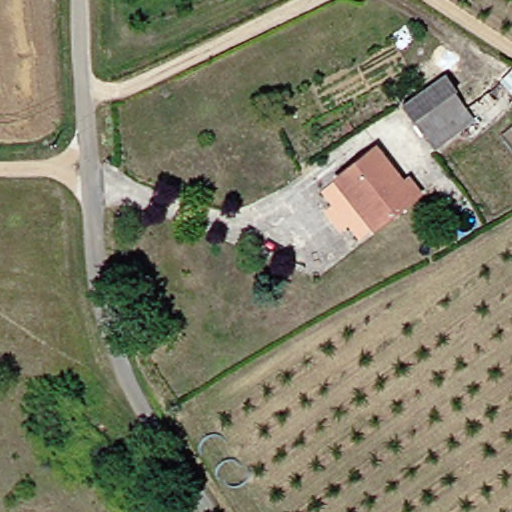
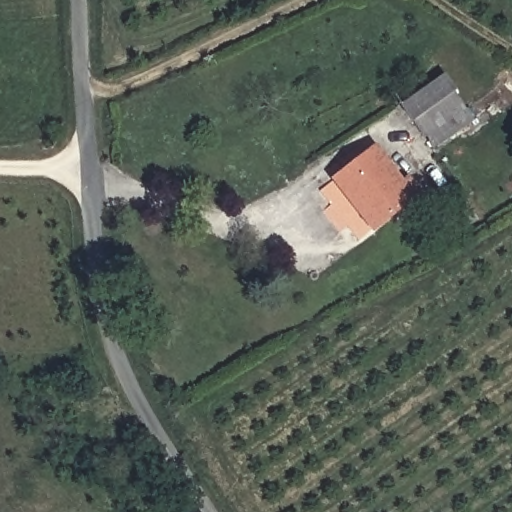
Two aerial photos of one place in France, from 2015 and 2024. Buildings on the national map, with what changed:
unchanged [(462,110),(507,74),(512,79),(512,103),(463,144),(456,135),(431,155),(396,106),(438,79),(462,110)]
unchanged [(397,189),(406,185),(415,199),(363,230),(327,174),(372,148),(397,189)]
unchanged [(462,235),(450,217),(463,210),(475,229),(462,235)]

